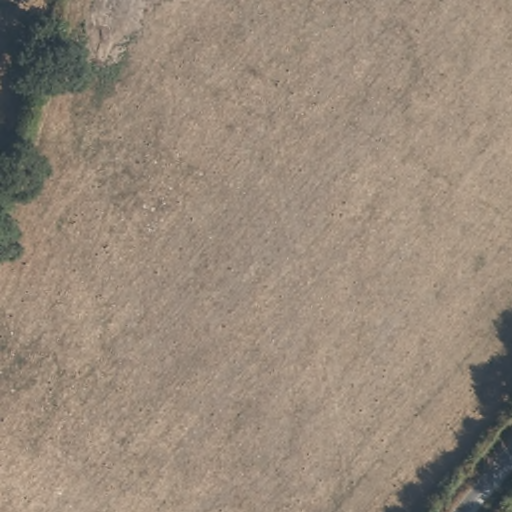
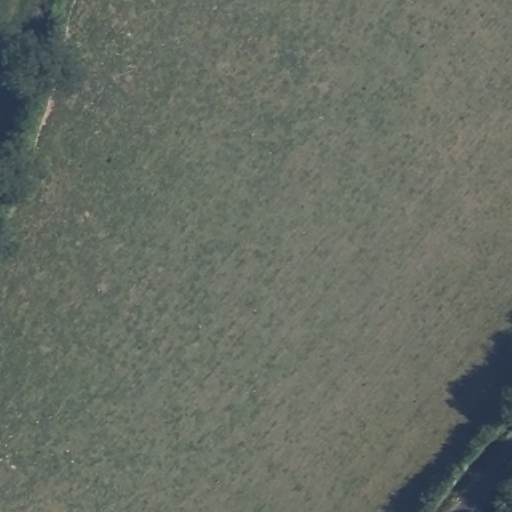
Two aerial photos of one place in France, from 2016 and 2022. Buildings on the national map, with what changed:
[]

